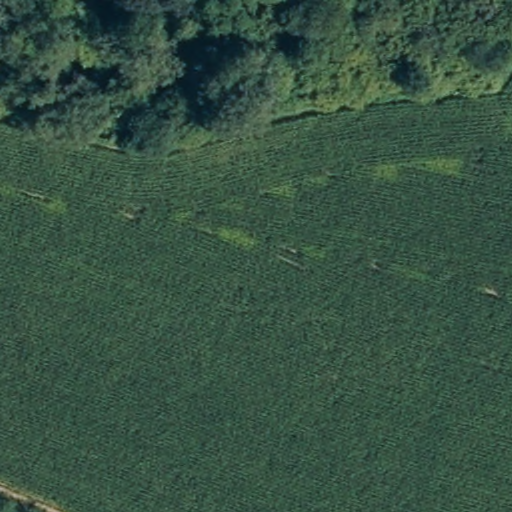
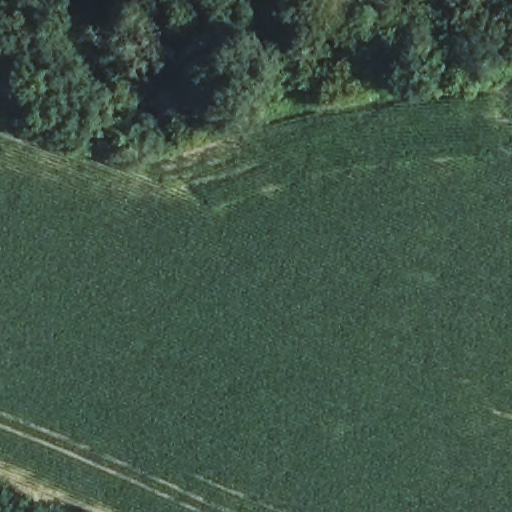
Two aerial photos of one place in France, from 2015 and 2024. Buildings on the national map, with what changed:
[]

